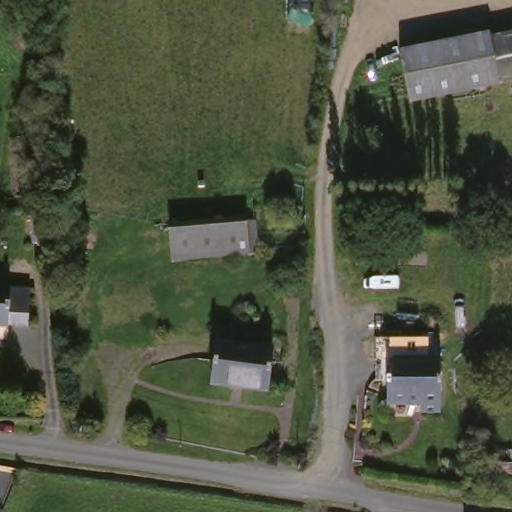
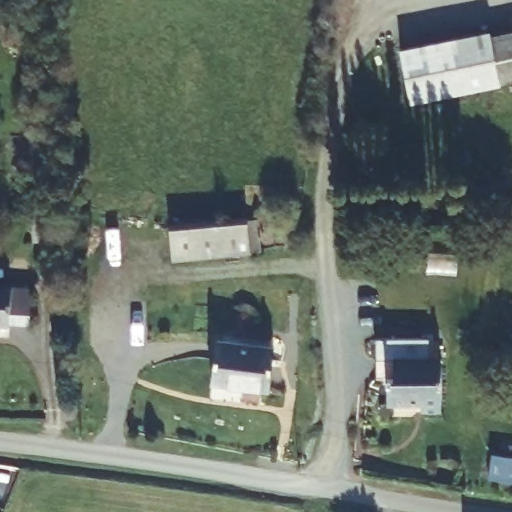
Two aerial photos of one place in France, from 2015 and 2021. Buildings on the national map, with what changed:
unchanged [(493,31),(503,80),(414,99),(404,50),(493,31)]
unchanged [(503,80),(494,35),(512,31),(512,79),(503,80)]
unchanged [(40,228),(26,230),(24,194),(39,193),(40,228)]
unchanged [(260,216),(263,250),(171,255),(169,222),(260,216)]
unchanged [(14,315),(14,320),(0,320),(0,281),(31,281),(33,315),(14,315)]
unchanged [(273,341),(274,386),(220,385),(222,340),(273,341)]
unchanged [(447,407),(429,408),(428,401),(394,401),(394,377),(401,377),(400,358),(446,358),(447,407)]
unchanged [(512,447),(512,497),(492,497),(494,448),(512,447)]

